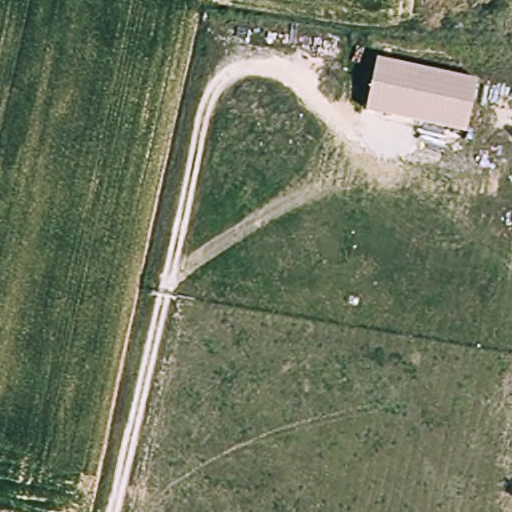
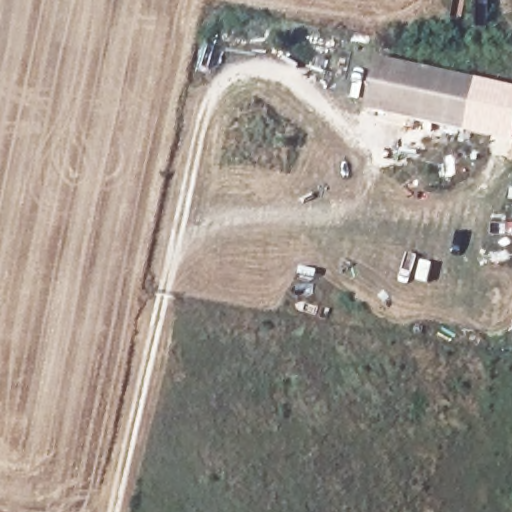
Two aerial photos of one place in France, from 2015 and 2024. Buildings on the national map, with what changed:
unchanged [(464,132),(364,110),(376,57),(477,79),(464,132)]
new [(477,79),(512,87),(512,143),(464,132),(477,79)]

